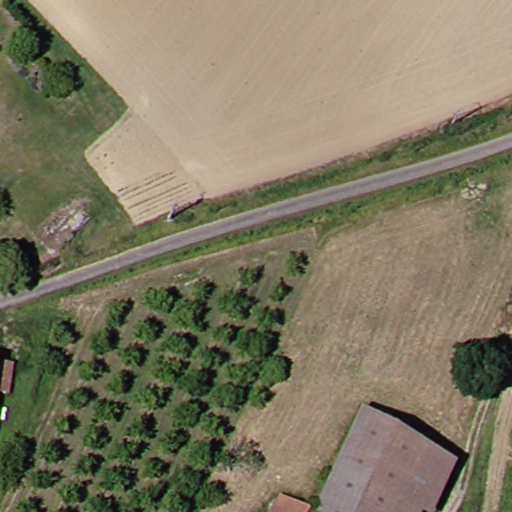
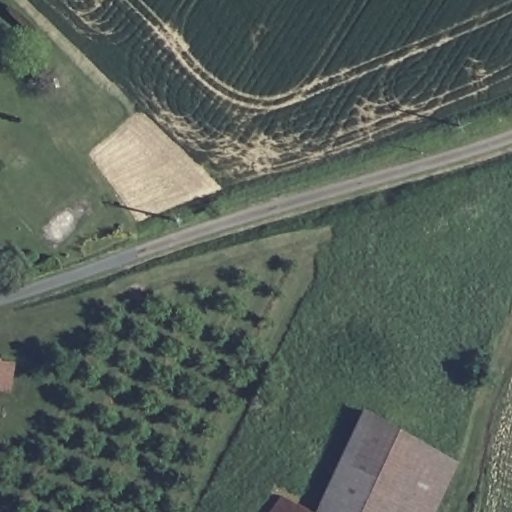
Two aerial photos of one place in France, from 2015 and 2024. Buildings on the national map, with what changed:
unchanged [(0,374),(0,357),(1,357),(0,374)]
unchanged [(368,417),(468,471),(444,512),(321,512),(317,510),(368,417)]
unchanged [(289,492),(317,510),(321,512),(288,512),(279,506),(289,492)]
unchanged [(279,506),(288,512),(275,512),(279,506)]

